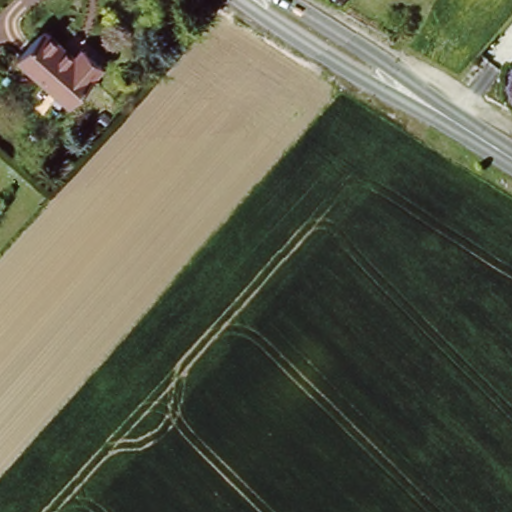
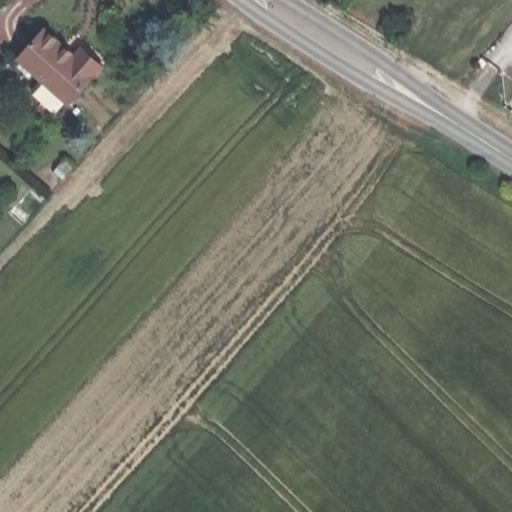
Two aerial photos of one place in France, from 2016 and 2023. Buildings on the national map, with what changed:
unchanged [(80,56),(85,49),(106,66),(71,107),(21,65),(50,30),(80,56)]

